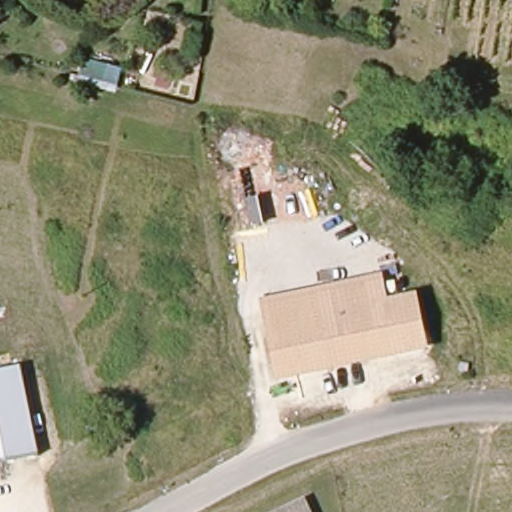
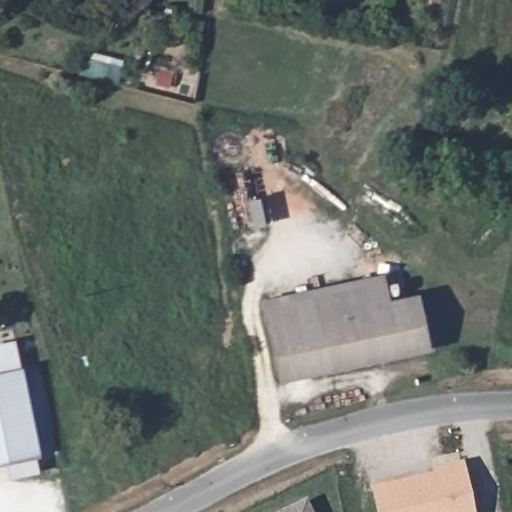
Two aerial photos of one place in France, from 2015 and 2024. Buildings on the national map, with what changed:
unchanged [(279,381),(259,301),(380,276),(388,301),(418,293),(428,350),(279,381)]
unchanged [(40,457),(0,465),(0,373),(21,368),(40,457)]
new [(434,466),(463,460),(475,512),(375,512),(369,485),(435,471),(434,466)]
unchanged [(312,512),(279,512),(306,500),(312,512)]

